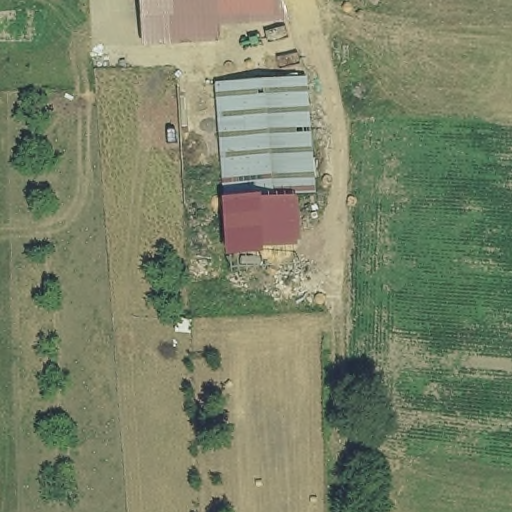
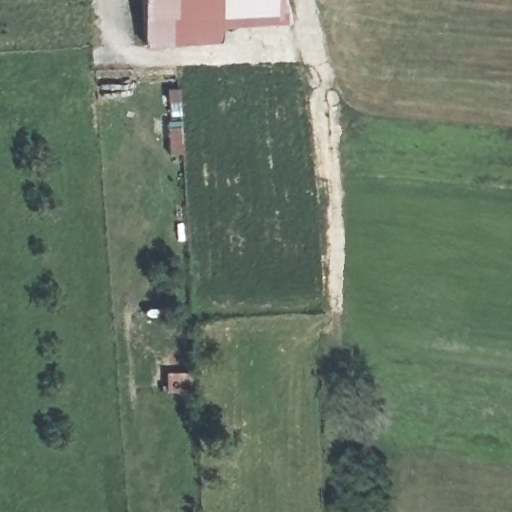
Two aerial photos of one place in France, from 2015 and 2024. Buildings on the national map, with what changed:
unchanged [(215,20),(216,41),(134,41),(134,0),(282,0),(287,19),(215,20)]
demolished [(298,195),(300,246),(226,258),(217,80),(309,74),(314,190),(298,195)]

